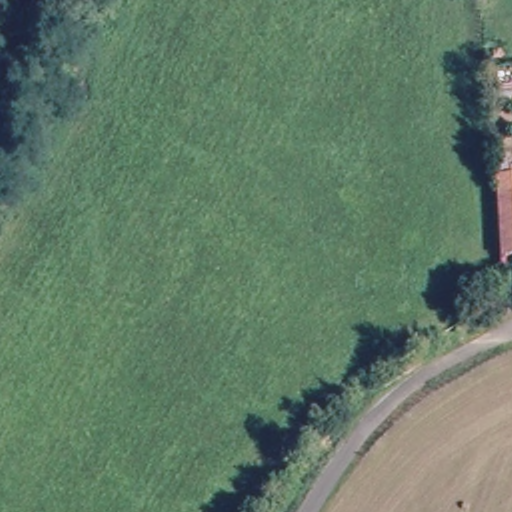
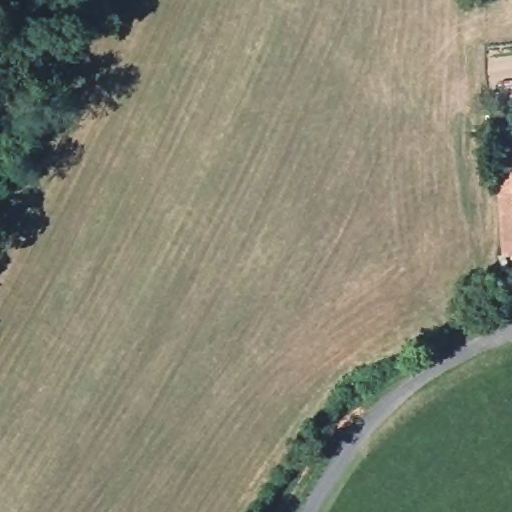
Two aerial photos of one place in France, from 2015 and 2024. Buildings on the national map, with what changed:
unchanged [(502,256),(499,199),(497,180),(512,179),(512,255),(502,256)]

